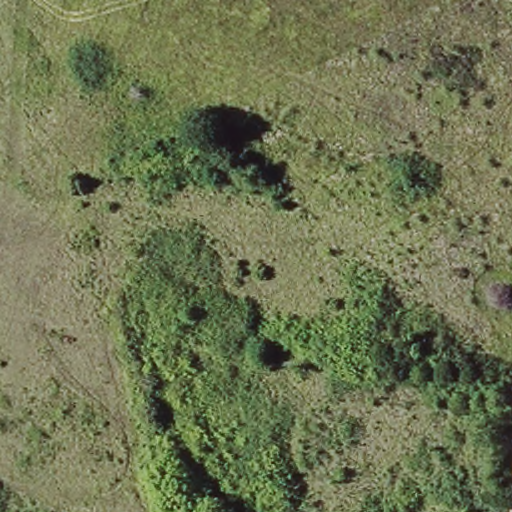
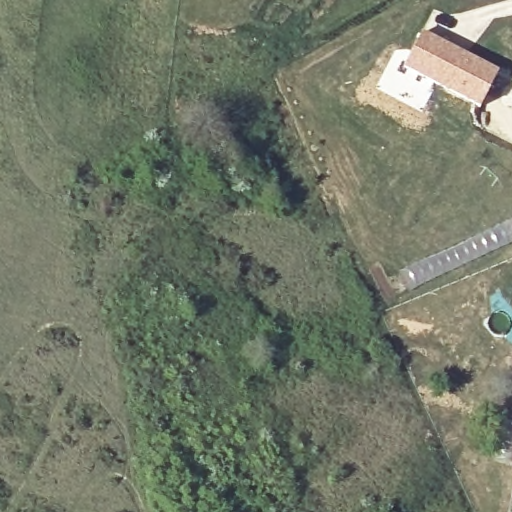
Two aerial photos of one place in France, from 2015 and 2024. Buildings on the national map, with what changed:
new [(425,35),(500,75),(482,109),(407,70),(425,35)]

